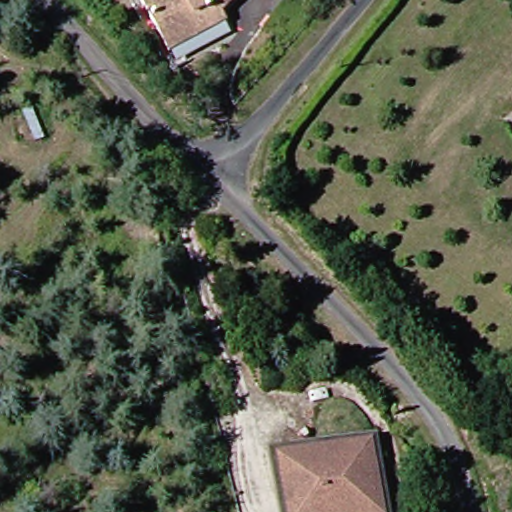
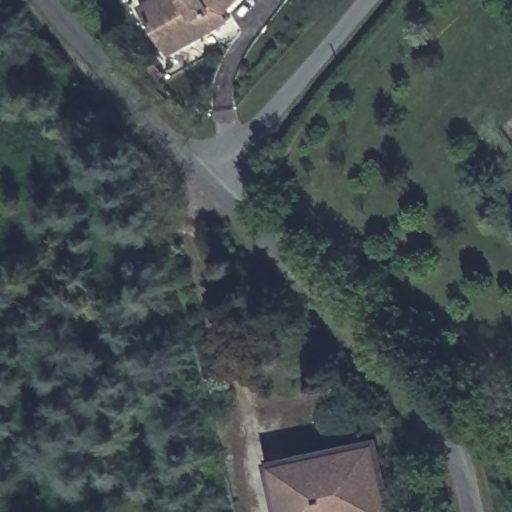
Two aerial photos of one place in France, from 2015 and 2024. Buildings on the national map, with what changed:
unchanged [(231,26),(177,61),(147,12),(167,0),(239,0),(229,12),(231,26)]
unchanged [(307,480),(303,459),(372,447),(377,467),(307,480)]
unchanged [(280,463),(303,459),(307,480),(377,467),(385,512),(289,512),(280,463)]

